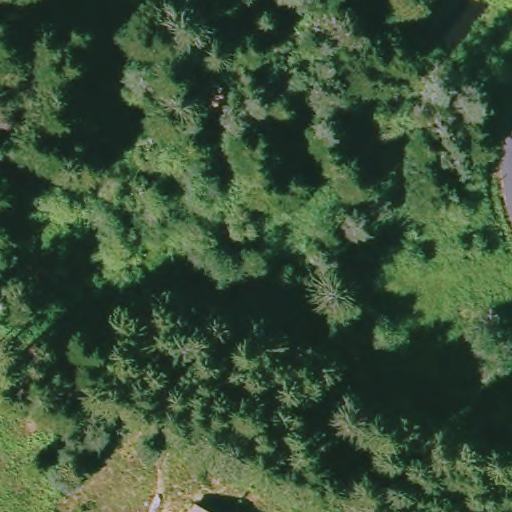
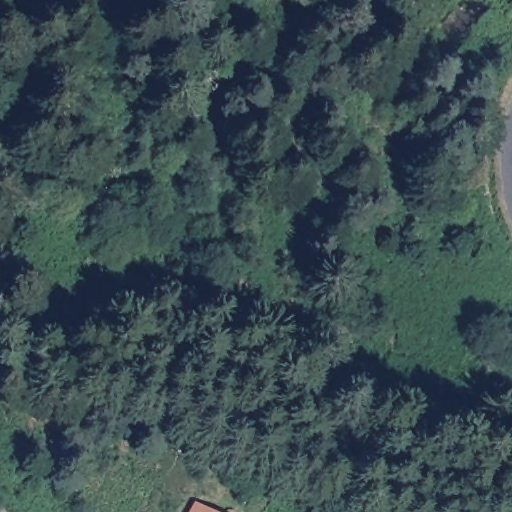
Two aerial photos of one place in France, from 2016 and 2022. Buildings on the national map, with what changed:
unchanged [(200,512),(190,512),(192,507),(200,512)]

